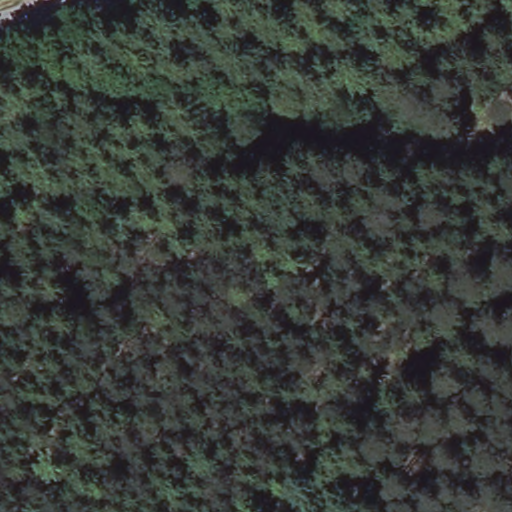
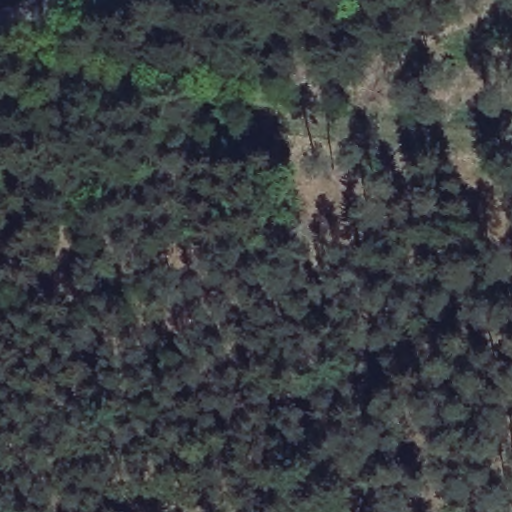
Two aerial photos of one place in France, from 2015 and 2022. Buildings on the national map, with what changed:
[]

